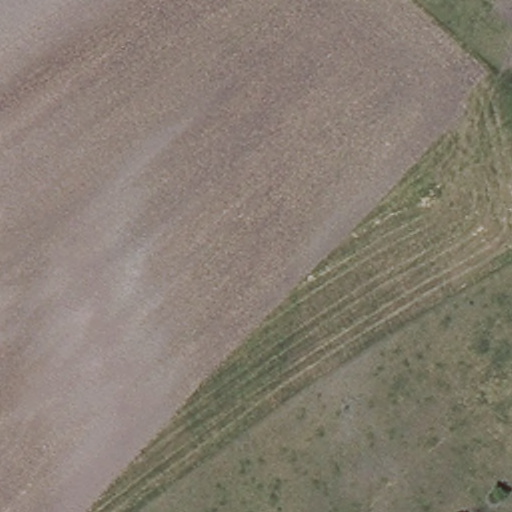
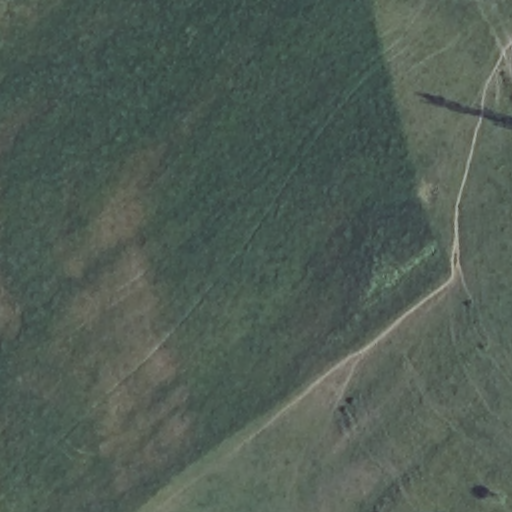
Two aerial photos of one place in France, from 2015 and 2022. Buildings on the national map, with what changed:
[]

